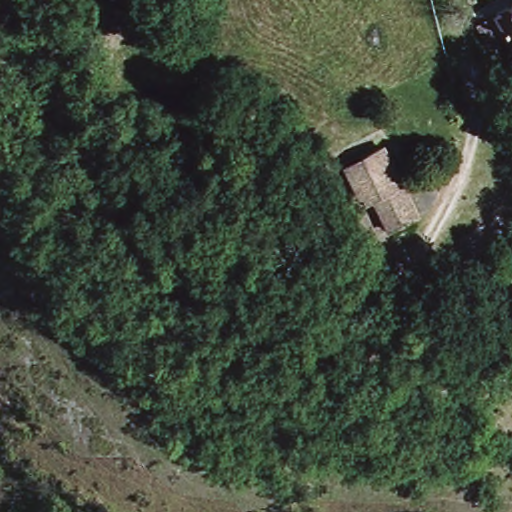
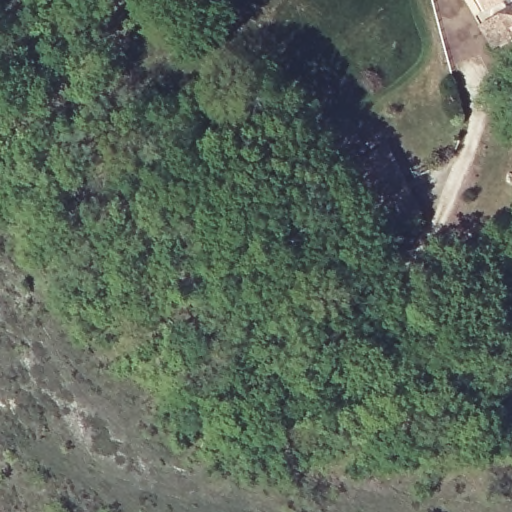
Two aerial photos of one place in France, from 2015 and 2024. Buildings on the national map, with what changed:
unchanged [(512,5),(512,51),(510,52),(490,18),(512,5)]
unchanged [(401,180),(405,178),(422,212),(393,227),(374,191),(366,195),(350,161),(366,153),(382,145),(401,180)]

